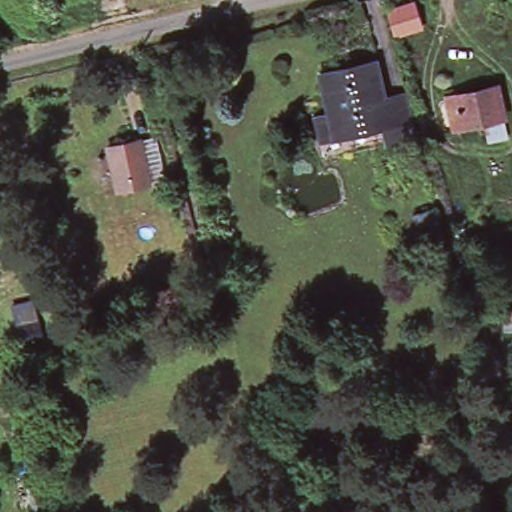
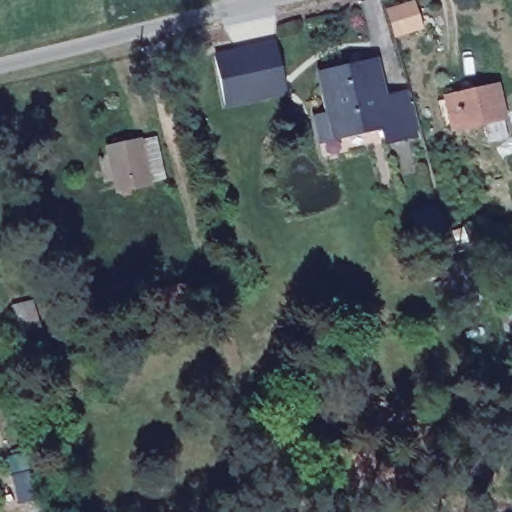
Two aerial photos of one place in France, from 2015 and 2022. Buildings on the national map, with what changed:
new [(415,1),(424,28),(397,38),(389,10),(415,1)]
new [(276,42),(286,94),(226,107),(215,54),(276,42)]
unchanged [(322,75),(375,63),(387,111),(410,105),(417,137),(385,144),(382,129),(362,133),(349,136),(345,118),(333,121),(327,95),(322,75)]
unchanged [(501,91),(507,119),(468,128),(450,131),(444,104),(462,100),(501,91)]
unchanged [(327,95),(333,121),(345,118),(349,136),(362,133),(365,149),(324,158),(311,98),(327,95)]
unchanged [(510,126),(512,137),(512,140),(495,143),(492,129),(510,126)]
unchanged [(101,151),(130,144),(147,141),(156,182),(139,185),(110,192),(107,181),(103,161),(101,151)]
unchanged [(18,230),(0,234),(0,200),(10,198),(18,230)]
unchanged [(447,234),(418,242),(412,215),(435,209),(447,234)]

